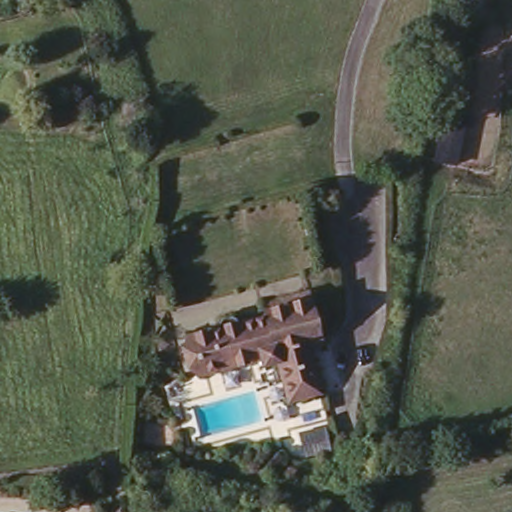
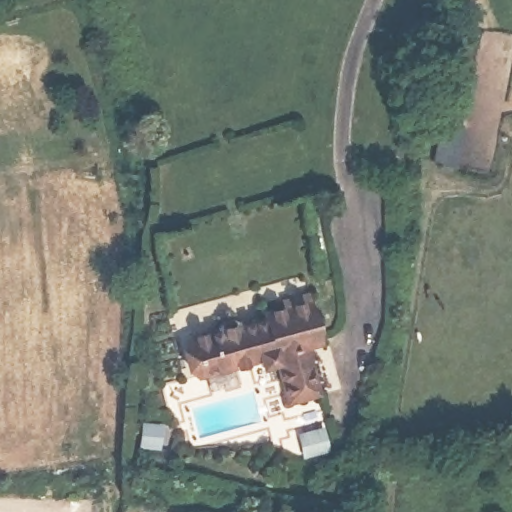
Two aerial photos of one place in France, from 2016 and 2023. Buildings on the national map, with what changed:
unchanged [(432,163),(442,92),(472,97),(461,164),(432,163)]
unchanged [(219,325),(218,322),(222,315),(232,314),(242,318),(242,320),(266,313),(264,307),(288,301),(286,292),(307,286),(322,339),(308,343),(322,386),(292,395),(282,359),(262,366),(257,352),(236,357),(237,361),(203,371),(192,333),(219,325)]
unchanged [(328,422),(332,446),(306,453),(298,429),(328,422)]

